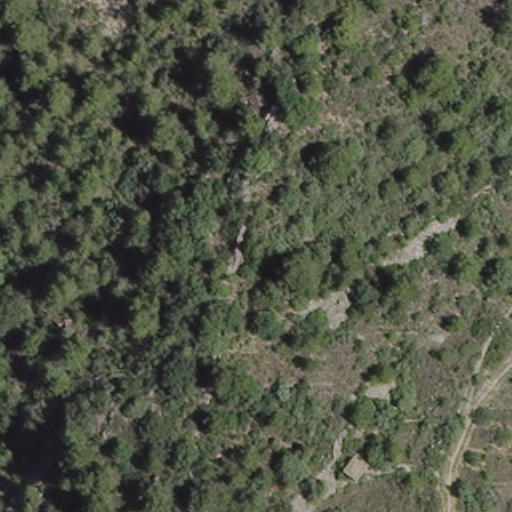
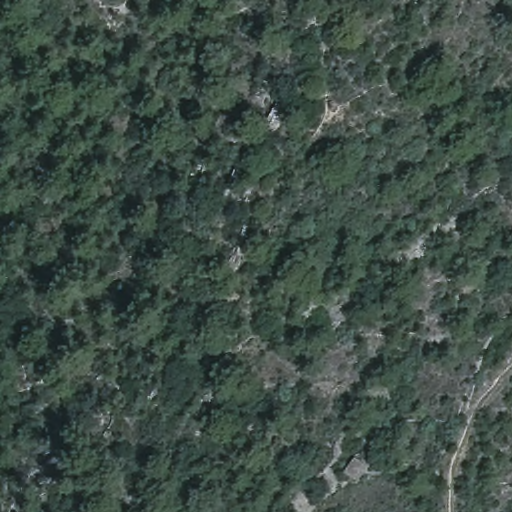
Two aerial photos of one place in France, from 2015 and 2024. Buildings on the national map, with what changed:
[]

